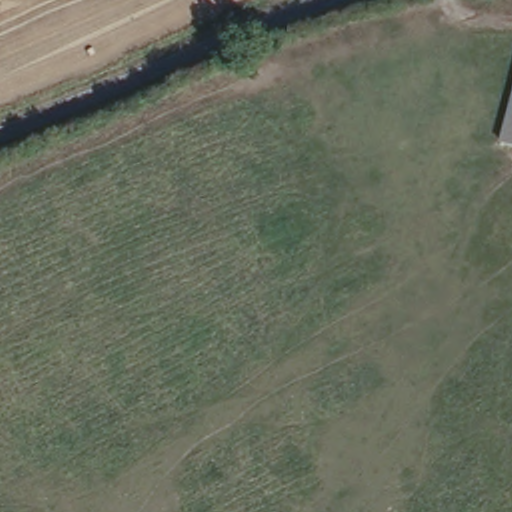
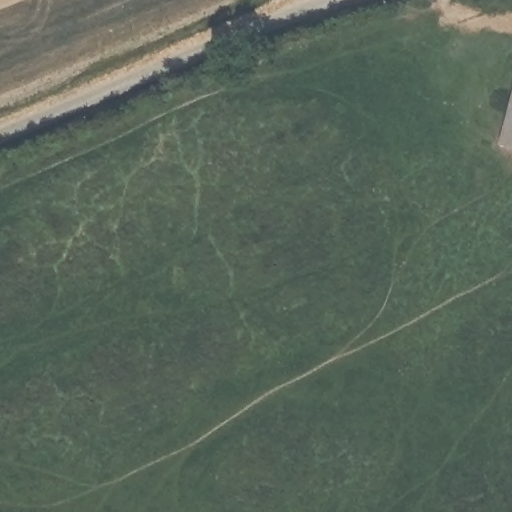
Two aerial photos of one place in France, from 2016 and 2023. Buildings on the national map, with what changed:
unchanged [(499,149),(512,100),(512,153),(499,149)]

